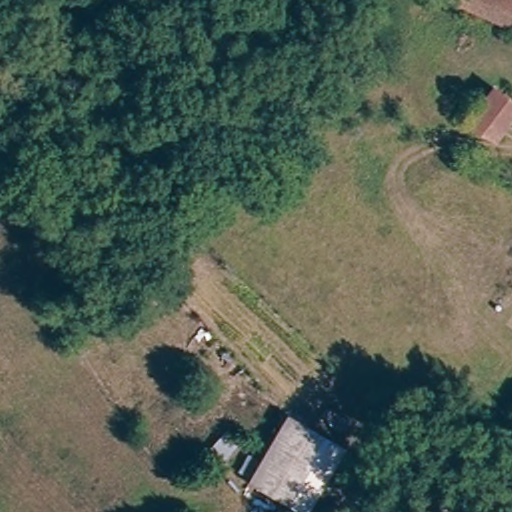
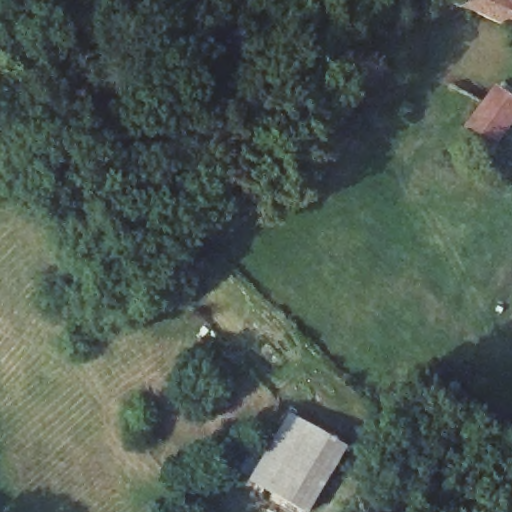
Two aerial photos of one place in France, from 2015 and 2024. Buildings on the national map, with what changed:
unchanged [(512,0),(512,20),(483,6),(471,0),(512,0)]
unchanged [(512,118),(495,141),(470,121),(495,90),(512,103),(512,118)]
unchanged [(340,441),(300,507),(245,472),(287,406),(340,441)]

